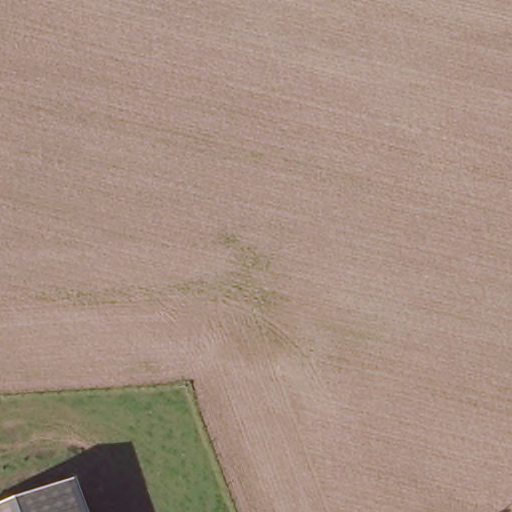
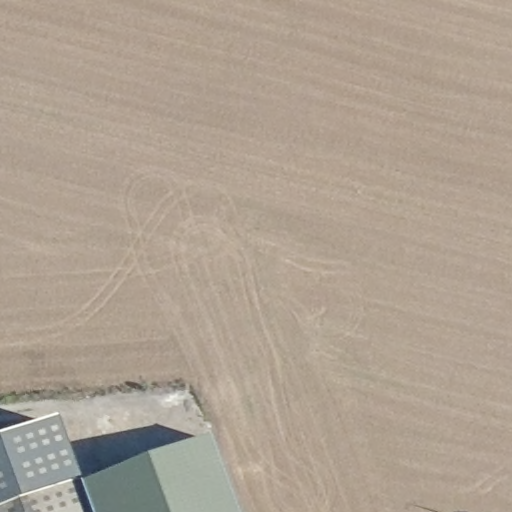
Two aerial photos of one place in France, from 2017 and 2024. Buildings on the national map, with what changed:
new [(86,512),(0,512),(0,452),(57,431),(86,512)]
new [(209,443),(234,512),(86,512),(78,488),(209,443)]
demolished [(86,512),(6,512),(76,486),(86,512)]

